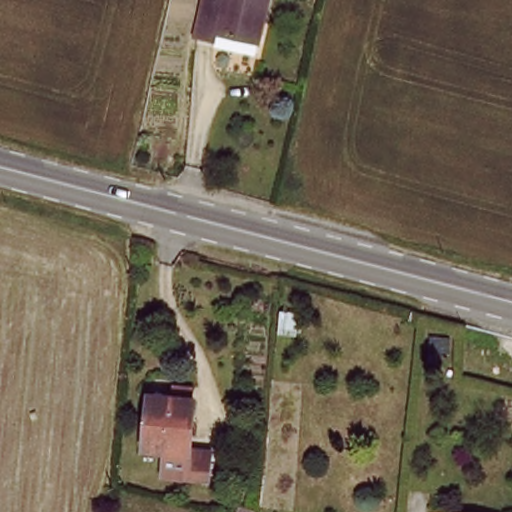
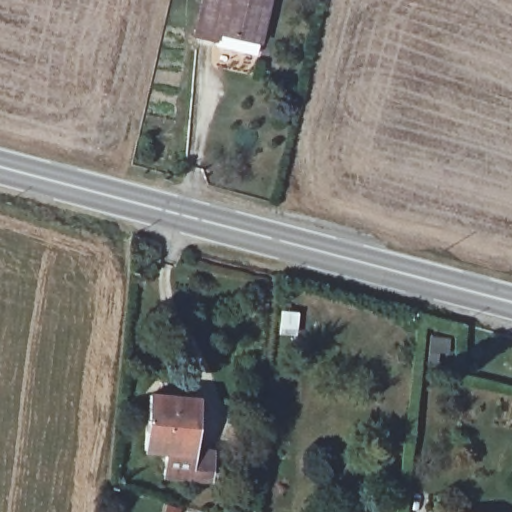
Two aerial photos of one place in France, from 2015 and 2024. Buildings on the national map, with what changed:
unchanged [(263,0),(255,41),(215,32),(212,41),(193,38),(201,0),(263,0)]
unchanged [(172,447),(156,445),(163,390),(201,395),(194,451),(212,455),(209,484),(168,476),(172,447)]

